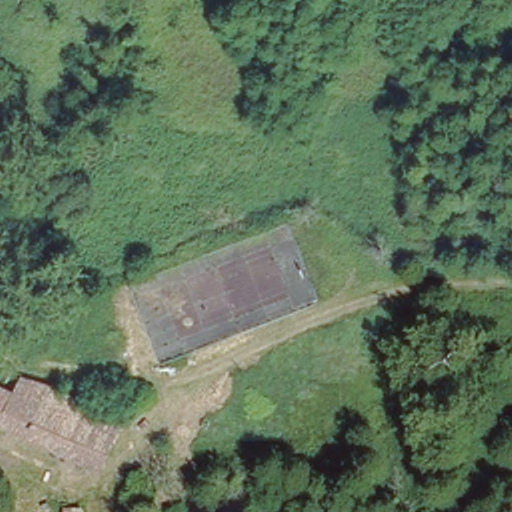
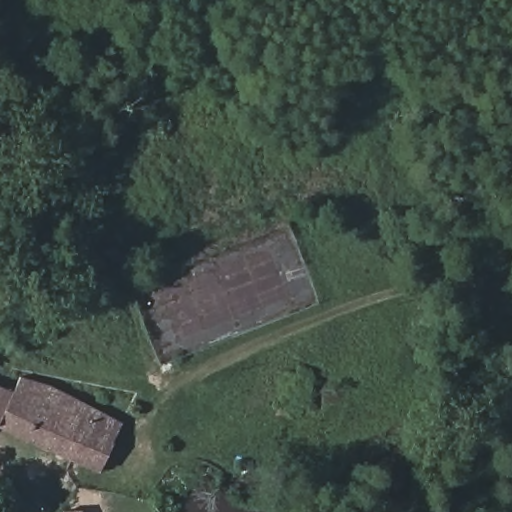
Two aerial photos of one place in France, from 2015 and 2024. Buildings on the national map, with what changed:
unchanged [(23,382),(58,392),(125,429),(100,476),(0,429),(0,389),(15,397),(23,382)]

